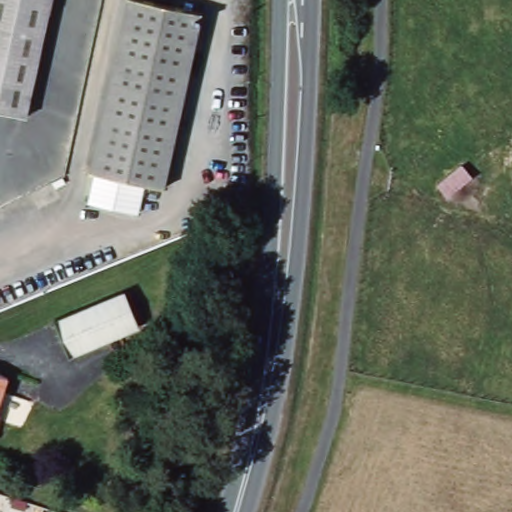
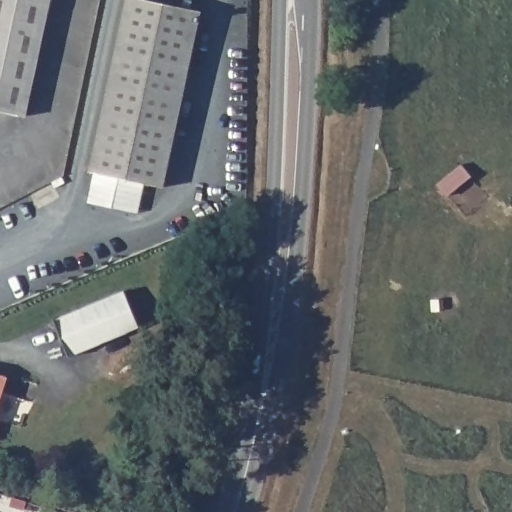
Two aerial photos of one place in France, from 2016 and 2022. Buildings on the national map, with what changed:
unchanged [(33,113),(0,106),(0,0),(56,0),(33,113)]
unchanged [(127,0),(152,0),(202,10),(165,187),(91,171),(127,0)]
unchanged [(135,290),(149,327),(80,356),(66,318),(135,290)]
unchanged [(197,330),(179,320),(185,307),(204,318),(197,330)]
unchanged [(0,411),(3,412),(0,423),(0,368),(13,372),(0,411)]

